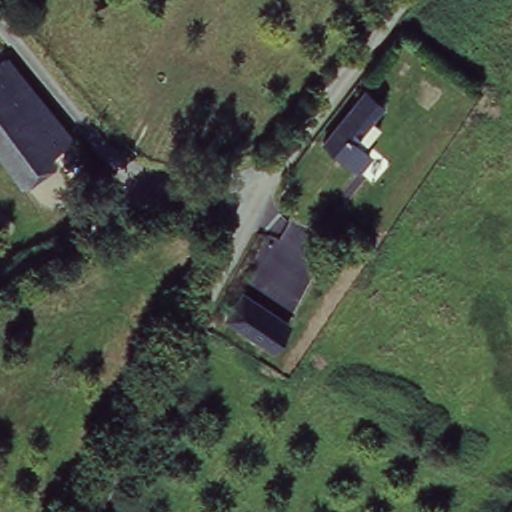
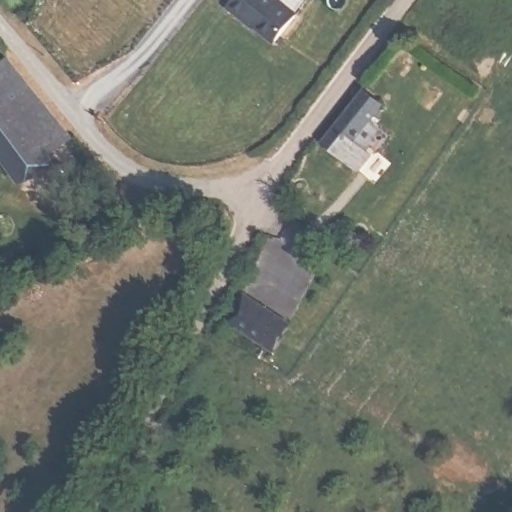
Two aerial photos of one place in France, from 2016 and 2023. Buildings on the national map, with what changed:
new [(229,0),(282,0),(297,12),(273,42),(226,4),(229,0)]
unchanged [(0,148),(0,66),(11,58),(72,137),(21,176),(0,148)]
unchanged [(361,86),(378,100),(367,115),(376,123),(363,138),(371,145),(353,165),(320,137),(361,86)]
unchanged [(276,351),(227,322),(242,293),(292,320),(276,351)]

